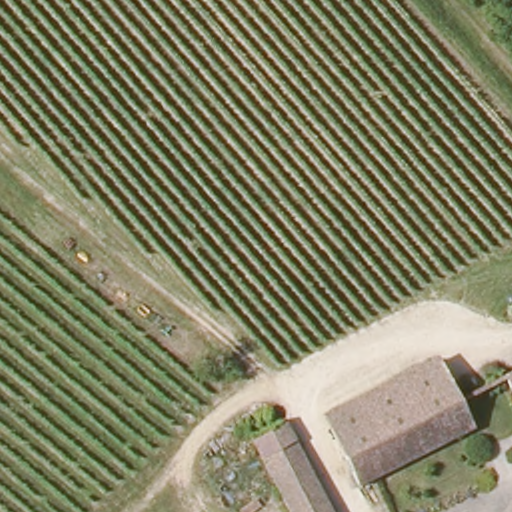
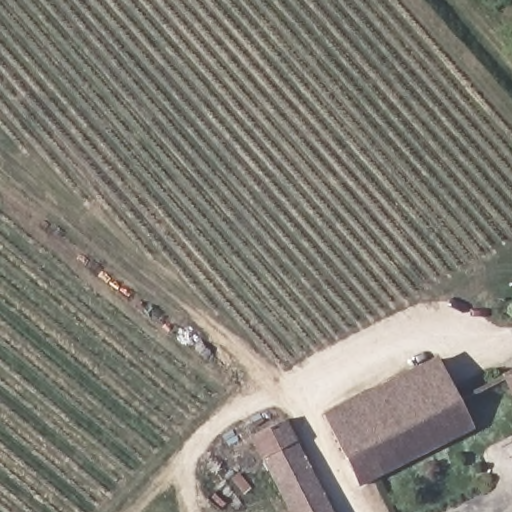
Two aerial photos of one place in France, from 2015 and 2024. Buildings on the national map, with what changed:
unchanged [(471,427),(358,485),(323,413),(435,359),(456,396),(471,427)]
unchanged [(497,372),(512,365),(512,403),(497,372)]
unchanged [(283,412),(333,512),(287,512),(290,511),(251,428),(279,414),(283,412)]
unchanged [(497,474),(475,484),(468,468),(490,458),(497,474)]

